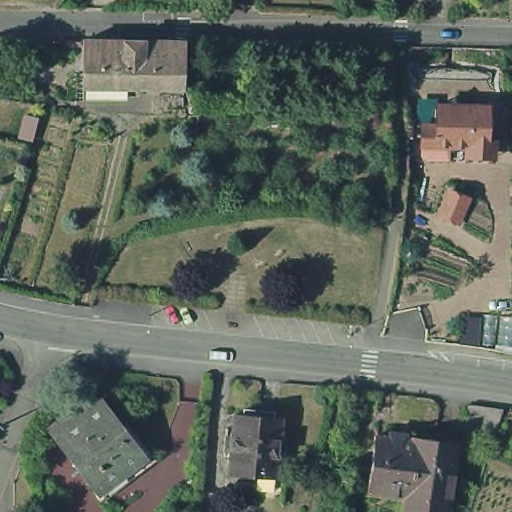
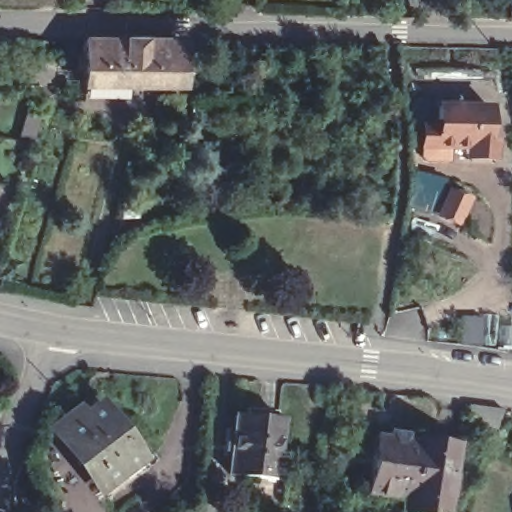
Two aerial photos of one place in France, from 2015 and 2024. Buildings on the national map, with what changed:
unchanged [(185,86),(85,85),(85,59),(85,38),(105,39),(187,40),(185,86)]
unchanged [(185,86),(185,111),(79,106),(78,98),(85,98),(85,85),(185,86)]
unchanged [(493,159),(467,157),(467,147),(435,146),(422,145),(422,125),(436,125),(437,105),(445,106),(454,99),(462,106),(488,107),(487,139),(487,140),(495,140),(493,159)]
unchanged [(435,220),(445,197),(463,205),(453,227),(435,220)]
unchanged [(502,411),(495,445),(466,436),(471,405),(502,411)]
unchanged [(121,461),(78,491),(36,430),(60,414),(65,420),(83,409),(98,428),(121,461)]
unchanged [(230,477),(237,416),(283,421),(277,481),(230,477)]
unchanged [(105,423),(135,465),(85,500),(78,491),(121,461),(98,428),(105,423)]
unchanged [(367,497),(372,438),(385,440),(386,435),(404,436),(403,442),(410,443),(410,439),(455,445),(447,512),(401,512),(402,501),(367,497)]
unchanged [(203,497),(220,499),(218,512),(201,512),(203,497)]

